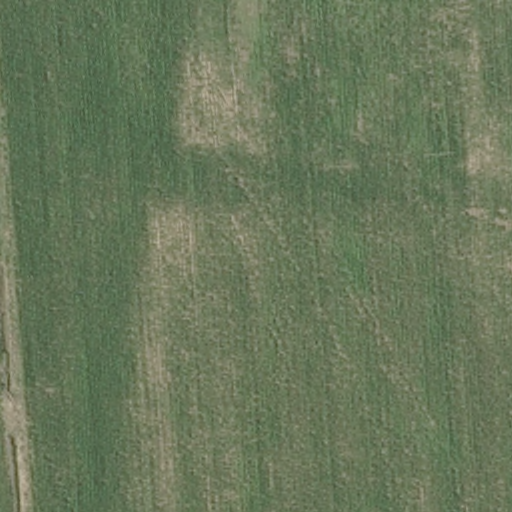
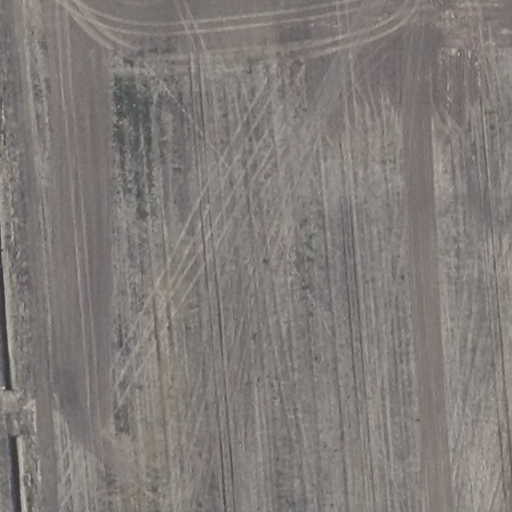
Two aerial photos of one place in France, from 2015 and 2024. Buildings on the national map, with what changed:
[]

